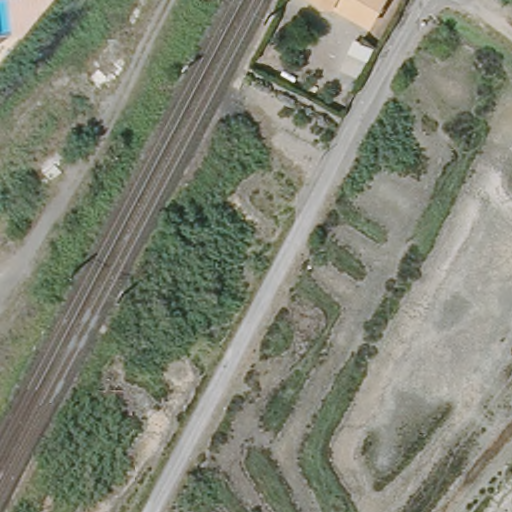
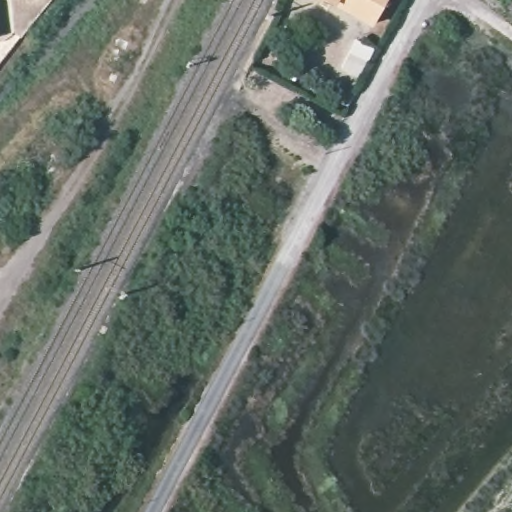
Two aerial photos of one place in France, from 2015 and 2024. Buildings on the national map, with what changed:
unchanged [(10,0),(27,0),(27,4),(11,6),(10,0)]
unchanged [(371,25),(323,0),(383,0),(371,25)]
unchanged [(337,67),(349,41),(366,50),(353,76),(337,67)]

